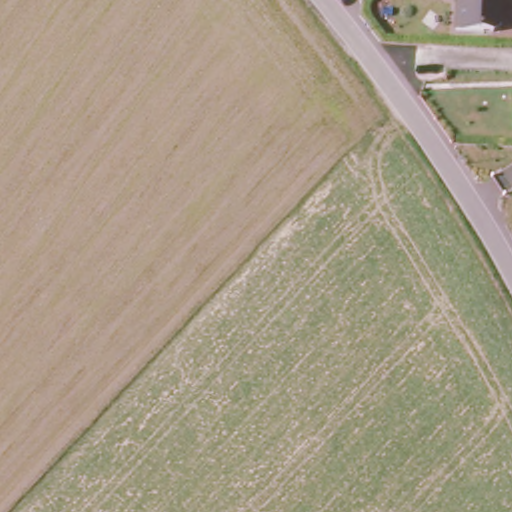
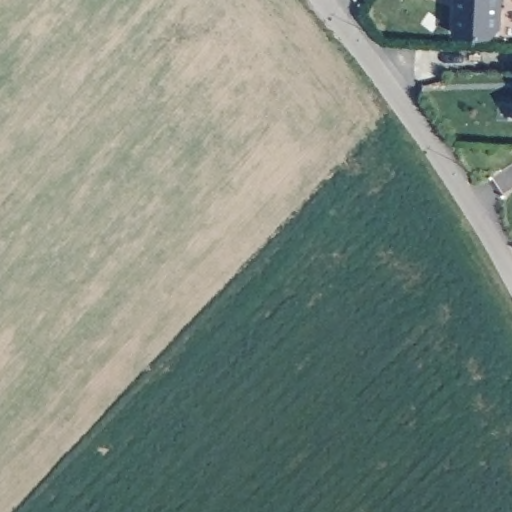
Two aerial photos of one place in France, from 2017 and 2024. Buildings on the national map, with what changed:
unchanged [(492,36),(453,34),(455,0),(504,0),(503,26),(492,36)]

